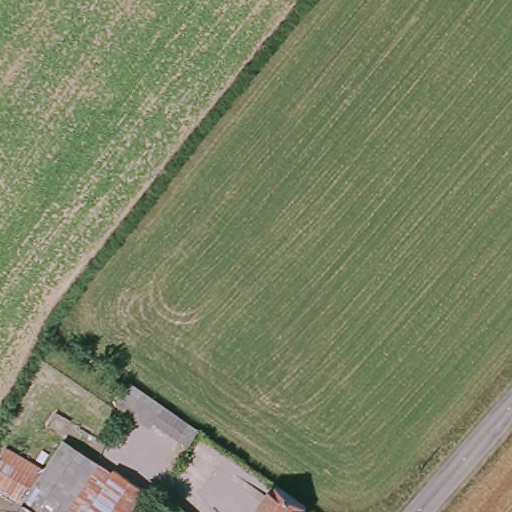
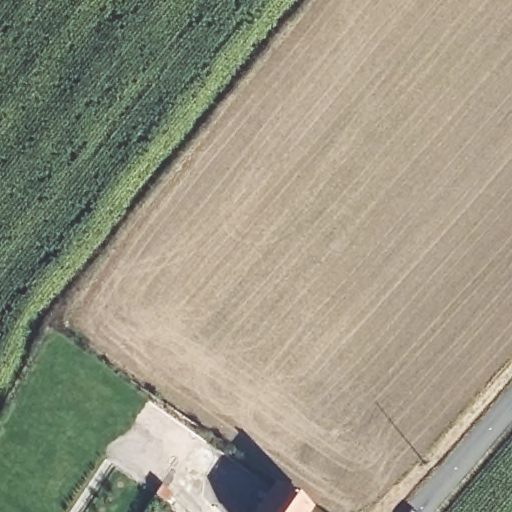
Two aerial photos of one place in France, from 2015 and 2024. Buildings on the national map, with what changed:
demolished [(40,477),(65,438),(99,459),(66,512),(0,512),(0,455),(40,477)]
demolished [(114,467),(153,492),(140,512),(84,512),(114,467)]
unchanged [(307,502),(300,512),(256,512),(278,481),(307,502)]

